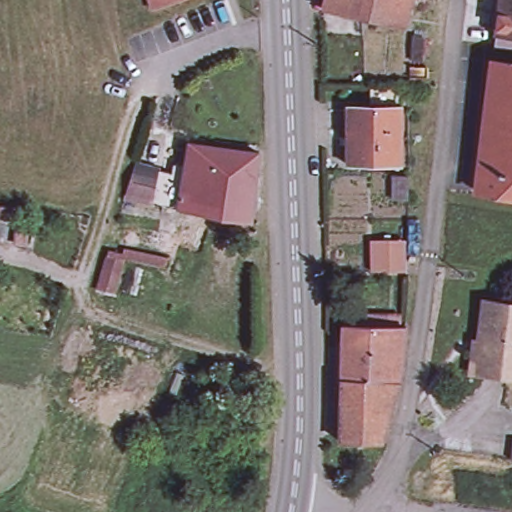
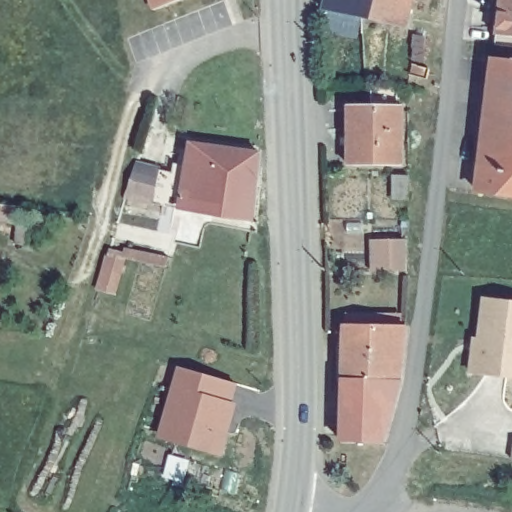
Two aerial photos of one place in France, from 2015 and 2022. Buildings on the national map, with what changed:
unchanged [(148,0),(185,0),(152,11),(148,0)]
unchanged [(332,8),(332,1),(332,0),(373,0),(369,17),(332,8)]
unchanged [(373,0),(417,0),(412,24),(411,27),(369,17),(373,0)]
unchanged [(497,29),(501,0),(512,0),(512,40),(495,37),(497,29)]
unchanged [(479,168),(492,60),(512,62),(512,195),(475,190),(479,168)]
unchanged [(352,106),(405,108),(403,165),(350,164),(352,106)]
unchanged [(192,163),(197,140),(250,148),(262,149),(256,218),(185,204),(170,202),(130,194),(140,160),(177,171),(179,161),(192,163)]
unchanged [(408,199),(392,199),(392,180),(392,176),(409,176),(409,180),(408,199)]
unchanged [(405,272),(391,271),(374,271),(374,241),(391,240),(405,240),(405,272)]
unchanged [(111,252),(129,256),(117,291),(100,286),(111,252)]
unchanged [(512,304),(512,324),(487,322),(490,301),(512,304)]
unchanged [(346,318),(397,321),(397,331),(402,332),(407,332),(397,383),(380,448),(341,446),(345,329),(346,318)]
unchanged [(478,340),(485,340),(487,322),(512,324),(512,377),(475,372),(478,340)]
unchanged [(159,352),(142,413),(67,389),(85,330),(159,352)]
new [(219,376),(239,382),(232,402),(237,403),(223,452),(183,440),(192,413),(180,409),(185,390),(178,387),(184,365),(219,376)]

